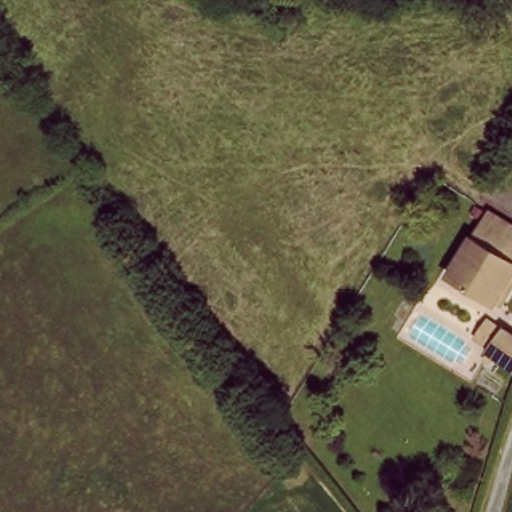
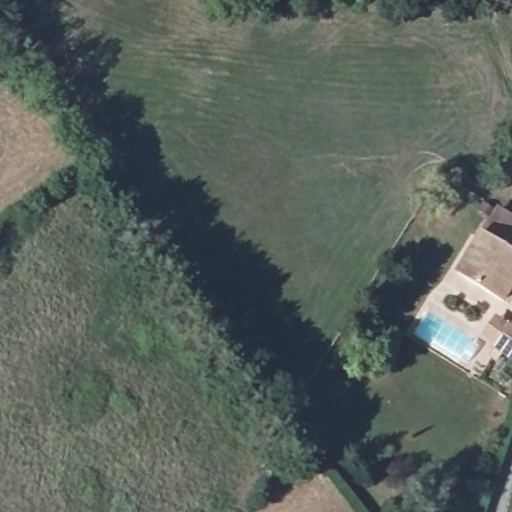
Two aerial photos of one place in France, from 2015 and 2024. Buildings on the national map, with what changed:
unchanged [(512,219),(512,287),(497,308),(455,279),(503,213),(512,219)]
unchanged [(512,363),(507,365),(491,337),(512,326),(512,363)]

